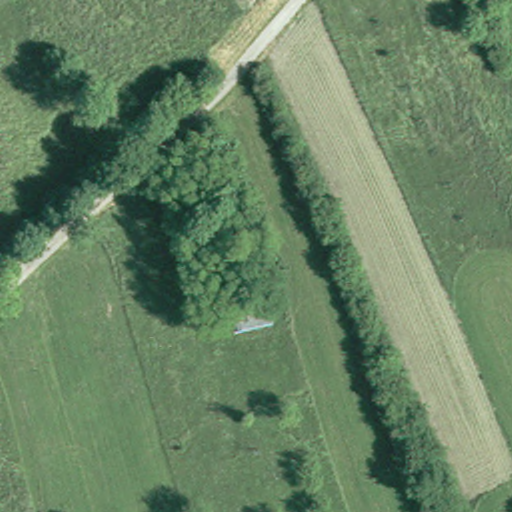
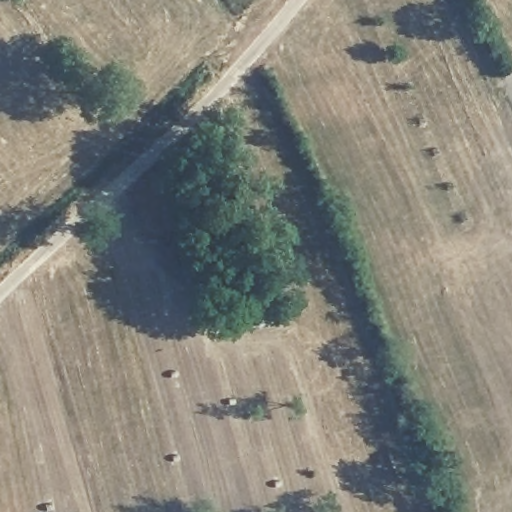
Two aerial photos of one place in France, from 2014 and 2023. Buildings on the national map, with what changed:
unchanged [(280,313),(246,333),(232,307),(268,288),(280,313)]

